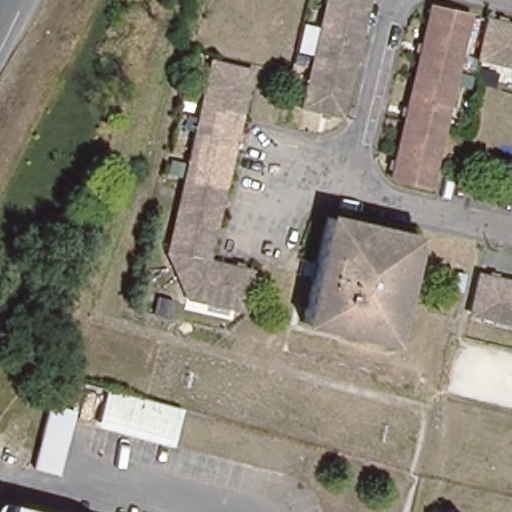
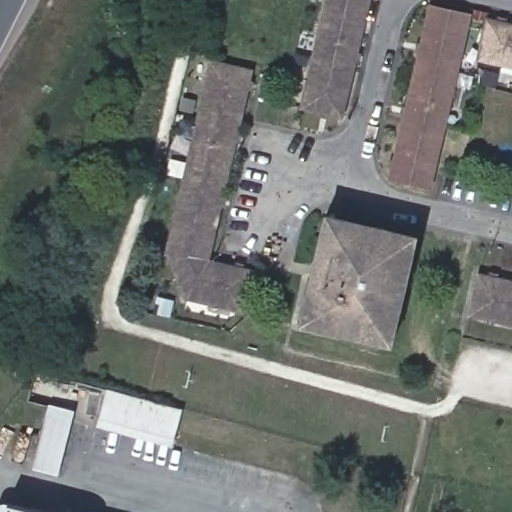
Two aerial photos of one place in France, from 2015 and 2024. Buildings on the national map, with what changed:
unchanged [(336,110),(300,102),(325,0),(361,0),(336,110)]
unchanged [(427,3),(464,12),(424,183),(387,174),(427,3)]
unchanged [(487,23),(512,29),(512,67),(478,59),(487,23)]
unchanged [(192,260),(165,253),(182,182),(197,116),(210,63),(249,74),(204,262),(249,273),(241,312),(184,298),(192,260)]
unchanged [(331,214),(417,235),(392,338),(305,318),(331,214)]
unchanged [(478,270),(512,278),(512,317),(468,306),(478,270)]
unchanged [(109,393),(180,413),(172,442),(102,423),(109,393)]
unchanged [(21,429),(30,401),(74,413),(66,442),(39,435),(21,429)]
unchanged [(66,442),(55,478),(29,470),(39,435),(66,442)]
unchanged [(38,512),(4,512),(7,504),(38,512)]

